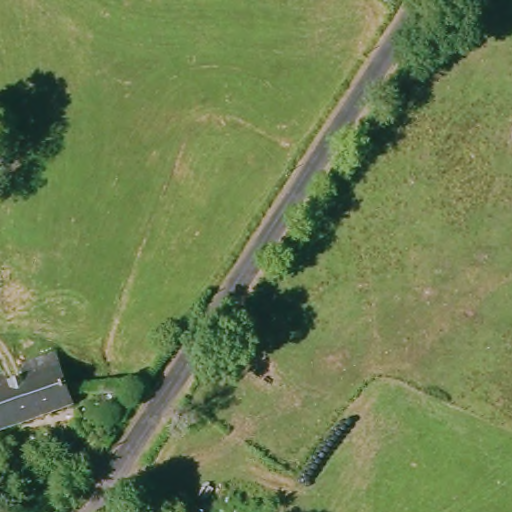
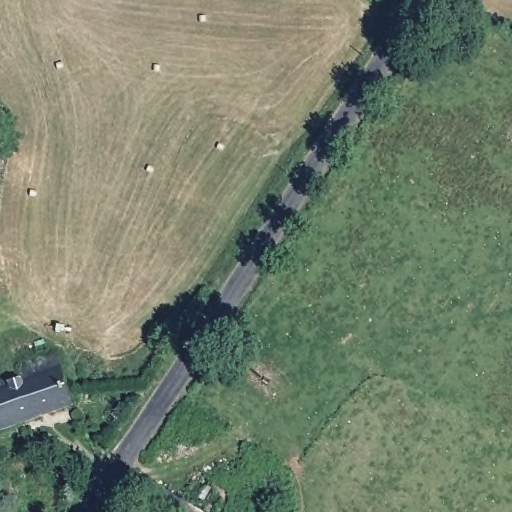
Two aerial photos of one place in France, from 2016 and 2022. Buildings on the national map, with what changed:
unchanged [(66,410),(0,437),(0,376),(50,354),(66,410)]

